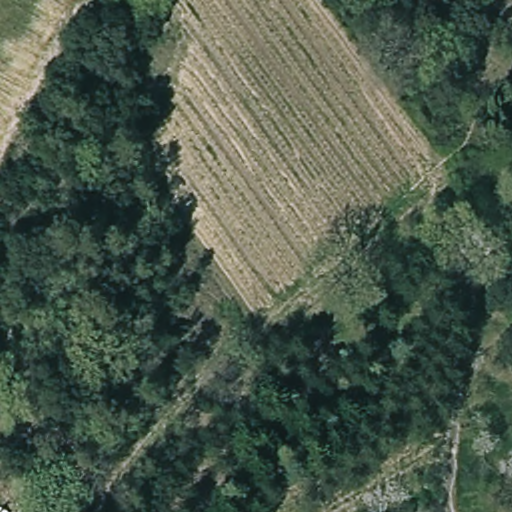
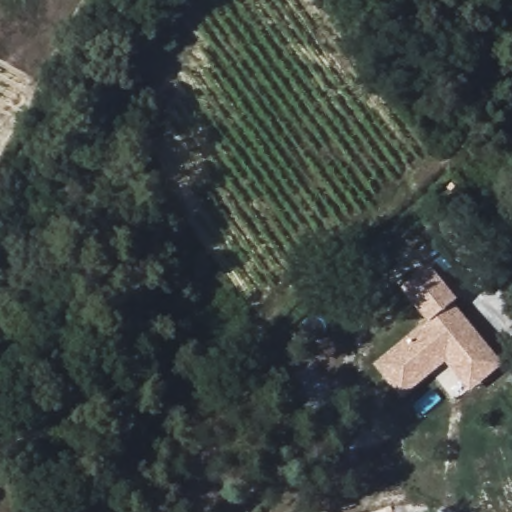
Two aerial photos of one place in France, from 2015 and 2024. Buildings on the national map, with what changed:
new [(453,368),(443,355),(429,367),(400,390),(375,360),(429,317),(402,283),(427,263),(454,297),(450,300),(497,361),(477,377),(467,385),(453,368)]

